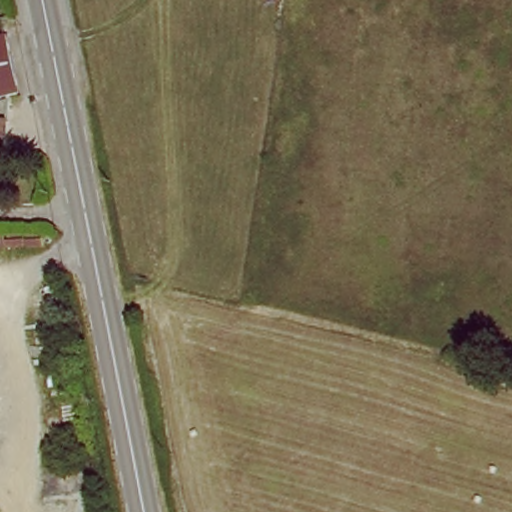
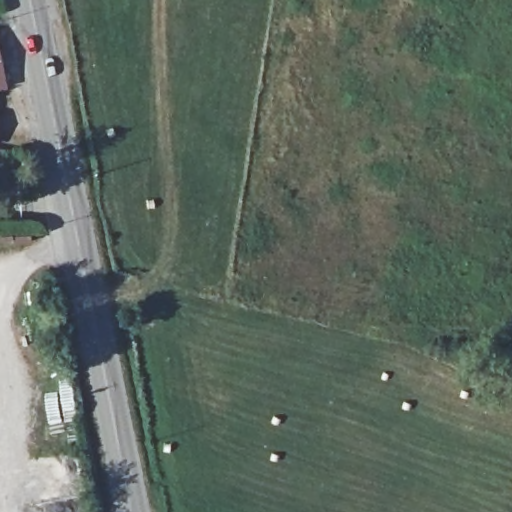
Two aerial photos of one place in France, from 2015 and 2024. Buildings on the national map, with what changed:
unchanged [(0,86),(0,54),(7,85),(0,86)]

